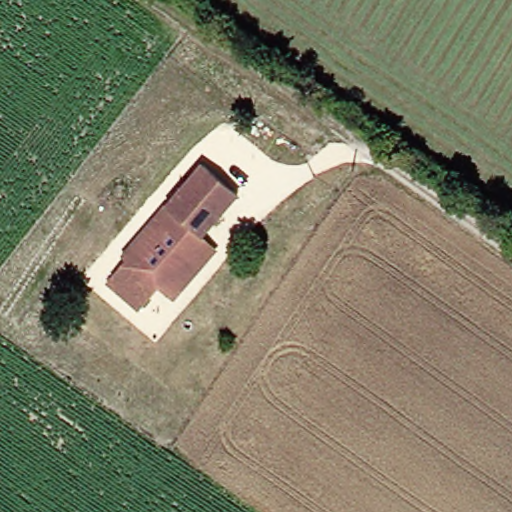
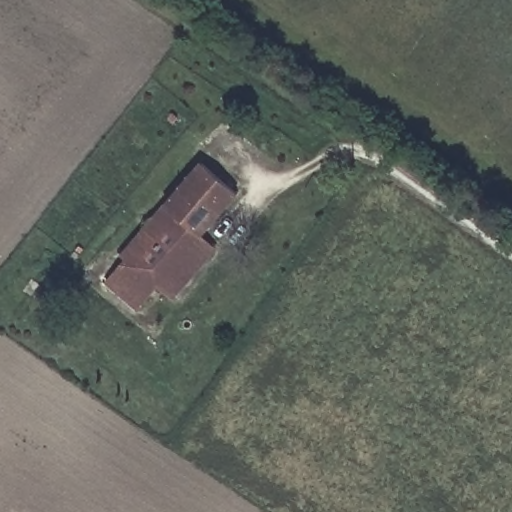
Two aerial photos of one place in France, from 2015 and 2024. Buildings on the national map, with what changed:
unchanged [(213,235),(229,249),(190,303),(175,289),(147,322),(112,292),(133,268),(132,266),(205,171),(242,198),(213,235)]

